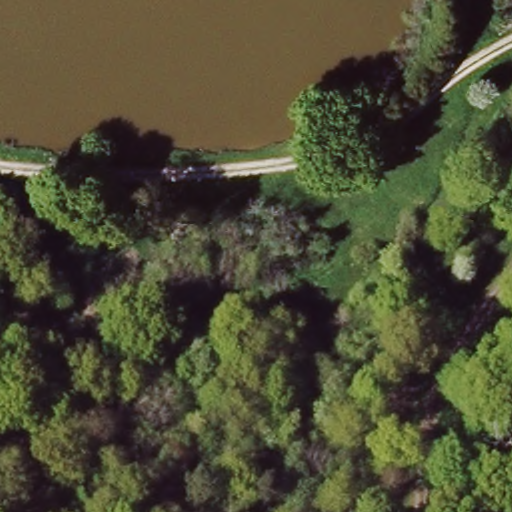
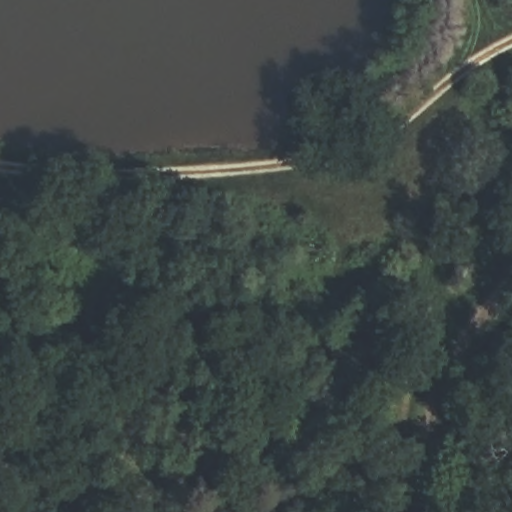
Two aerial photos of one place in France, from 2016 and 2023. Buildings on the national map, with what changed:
[]

